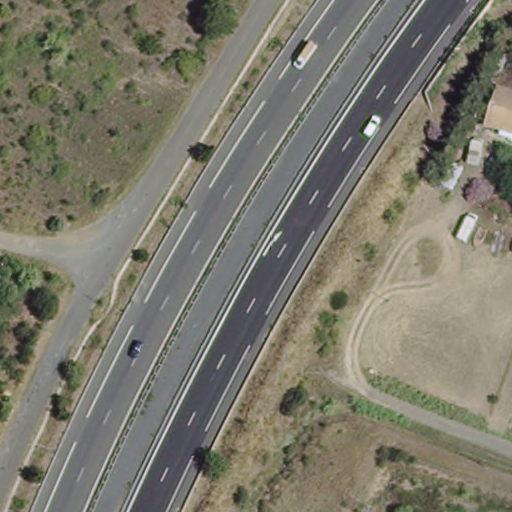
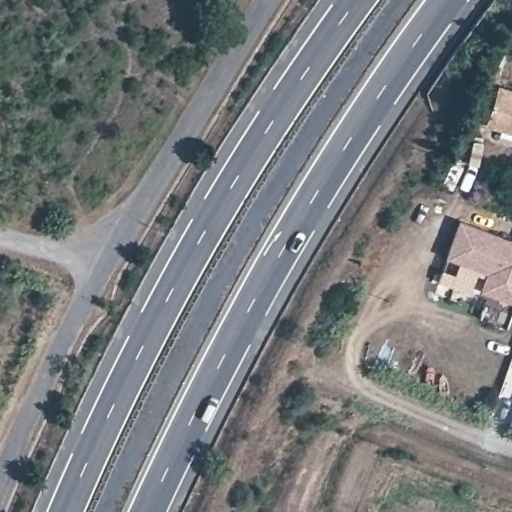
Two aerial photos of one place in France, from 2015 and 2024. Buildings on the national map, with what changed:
unchanged [(502,84),(512,86),(512,128),(489,121),(502,84)]
new [(512,240),(512,301),(481,291),(488,272),(446,258),(459,222),(512,240)]

